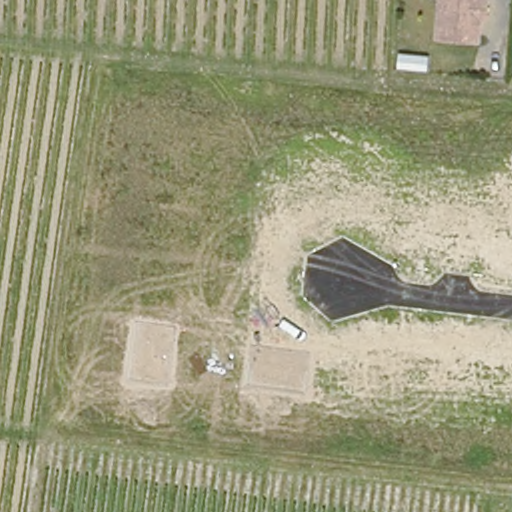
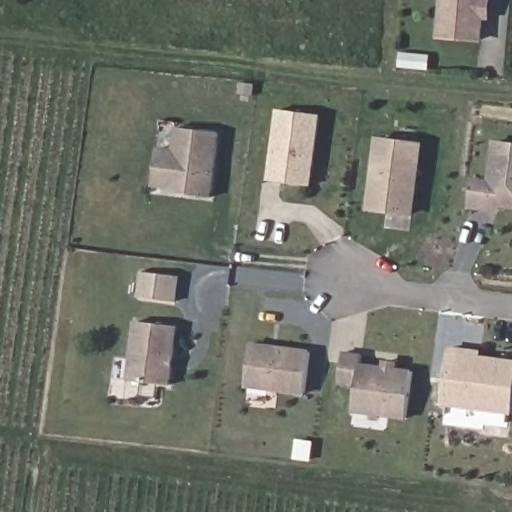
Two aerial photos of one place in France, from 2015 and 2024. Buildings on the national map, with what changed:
unchanged [(481,41),(440,38),(443,0),(484,0),(481,41)]
new [(321,115),(311,186),(268,180),(277,109),(321,115)]
new [(175,127),(221,133),(212,199),(168,192),(169,190),(152,187),(157,146),(172,149),(175,127)]
new [(377,136),(425,144),(415,217),(366,211),(377,136)]
new [(502,208),(500,214),(468,210),(473,177),(488,179),(493,141),(512,143),(512,209),(502,208)]
new [(181,276),(177,302),(138,297),(141,271),(181,276)]
new [(171,385),(127,380),(135,321),(179,326),(171,385)]
new [(311,350),(305,396),(246,387),(252,341),(311,350)]
new [(442,406),(450,350),(450,346),(483,350),(482,355),(512,360),(512,415),(442,406)]
new [(357,387),(339,385),(343,352),(362,354),(361,363),(382,366),(383,361),(398,363),(397,368),(414,370),(407,420),(353,413),(357,387)]

